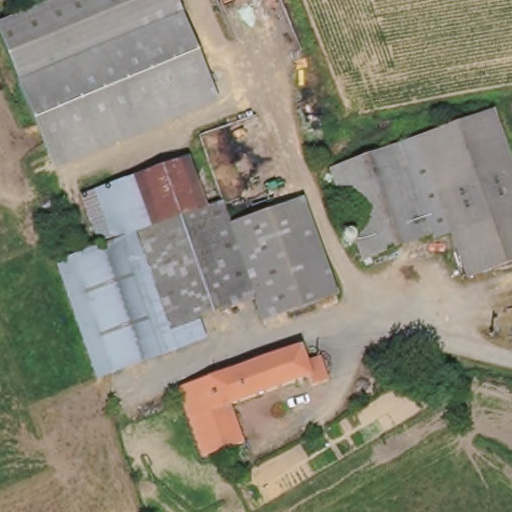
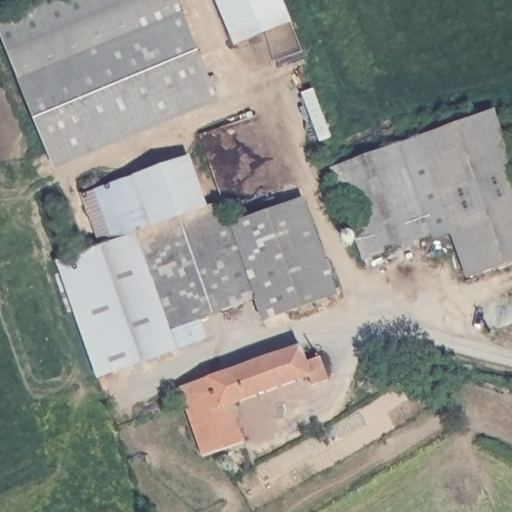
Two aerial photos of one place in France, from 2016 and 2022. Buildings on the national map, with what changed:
unchanged [(180,0),(182,2),(26,90),(0,44),(0,34),(61,0),(180,0)]
new [(215,0),(282,0),(291,22),(234,45),(215,0)]
unchanged [(26,90),(182,2),(220,69),(65,157),(26,90)]
unchanged [(220,69),(228,84),(73,171),(65,157),(220,69)]
unchanged [(475,89),(512,145),(512,243),(491,257),(462,214),(408,133),(475,89)]
unchanged [(462,214),(444,226),(389,146),(408,133),(462,214)]
unchanged [(444,226),(383,266),(330,185),(389,146),(444,226)]
unchanged [(78,197),(178,150),(200,195),(98,243),(78,197)]
unchanged [(200,195),(217,187),(228,211),(296,179),(340,271),(270,303),(260,284),(180,321),(189,341),(98,385),(44,268),(98,243),(200,195)]
unchanged [(307,351),(321,345),(334,368),(316,375),(312,366),(234,404),(252,440),(211,459),(177,394),(299,337),(307,351)]

